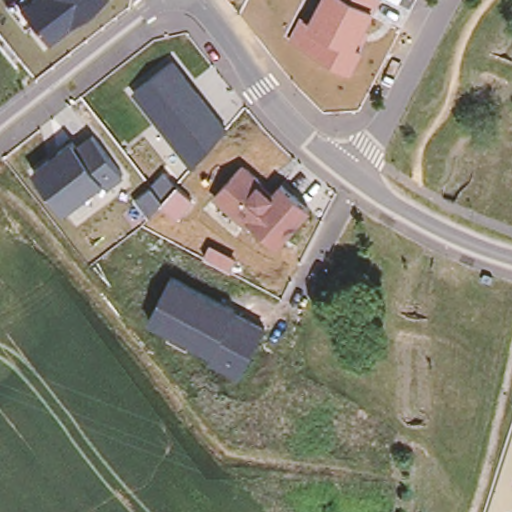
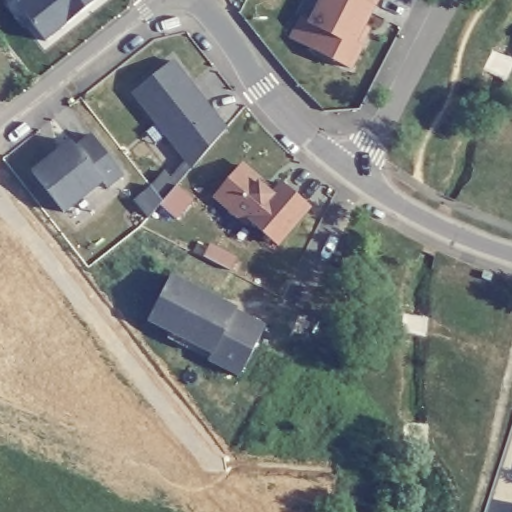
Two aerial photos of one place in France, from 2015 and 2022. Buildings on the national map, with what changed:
unchanged [(47,44),(18,9),(29,0),(101,0),(101,1),(47,44)]
unchanged [(380,0),(375,9),(357,45),(361,46),(347,71),(288,39),(300,16),(301,13),(310,19),(320,0),(380,0)]
unchanged [(186,80),(182,83),(194,98),(198,95),(227,132),(194,170),(176,147),(181,143),(163,120),(158,124),(134,95),(173,63),(186,80)]
unchanged [(50,163),(52,166),(61,160),(58,156),(73,144),(77,150),(93,138),(124,177),(110,189),(105,183),(66,214),(33,175),(50,163)]
unchanged [(251,224),(247,228),(215,199),(241,169),(247,169),(260,181),(276,194),(283,186),(310,210),(278,247),(251,224)]
unchanged [(168,341),(172,334),(150,323),(172,279),(237,312),(236,314),(266,329),(241,378),(210,362),(214,355),(191,344),(188,351),(168,341)]

